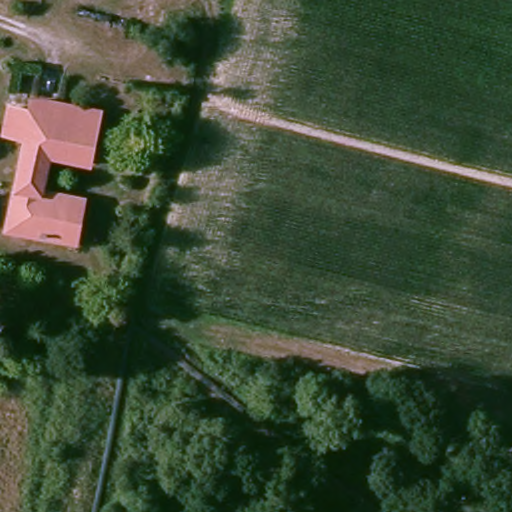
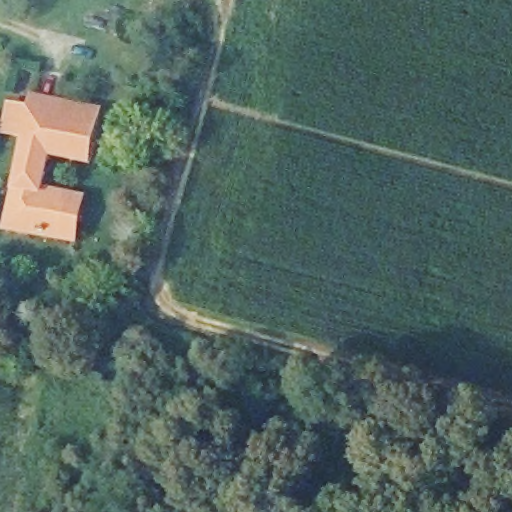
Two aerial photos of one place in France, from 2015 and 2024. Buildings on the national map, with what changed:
unchanged [(34,101),(35,91),(101,105),(90,158),(46,150),(40,184),(84,193),(76,239),(21,228),(19,237),(0,234),(20,130),(5,127),(10,96),(34,101)]

